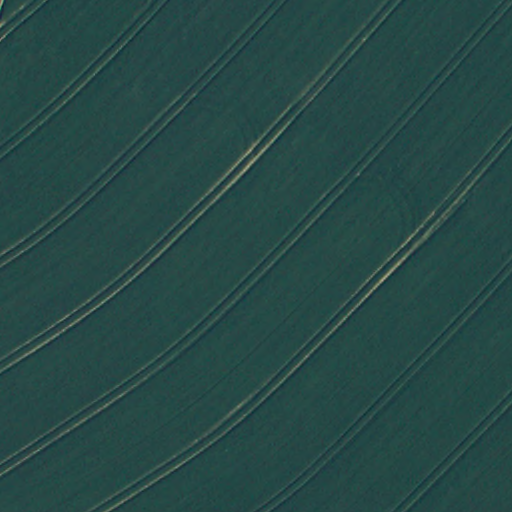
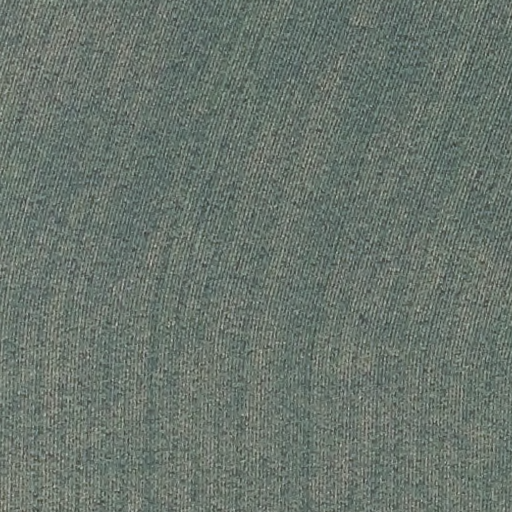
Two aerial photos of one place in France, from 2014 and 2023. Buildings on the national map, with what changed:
[]

